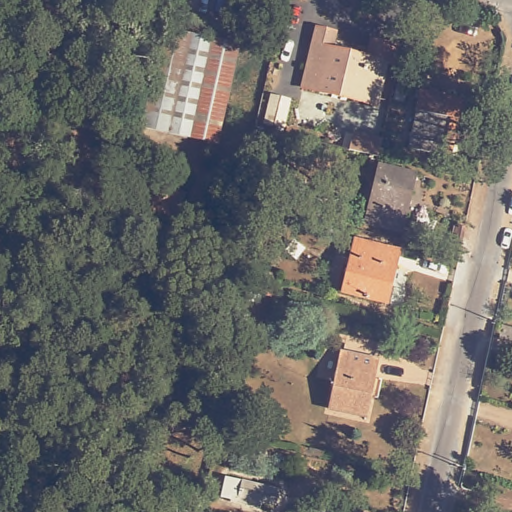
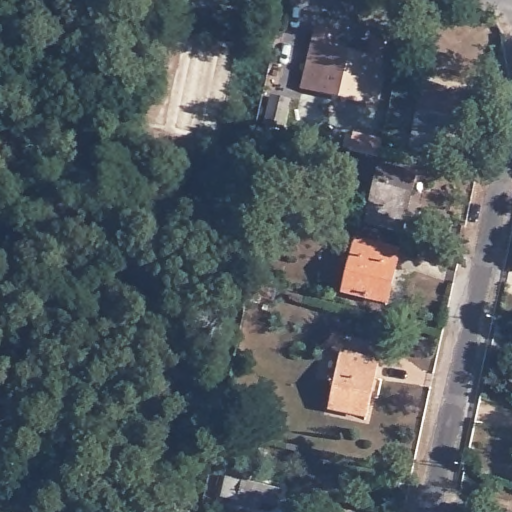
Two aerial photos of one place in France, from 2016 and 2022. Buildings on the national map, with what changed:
unchanged [(238,46),(216,142),(141,125),(163,28),(238,46)]
unchanged [(325,50),(361,58),(365,41),(384,45),(396,48),(392,66),(380,62),(370,105),(297,88),(311,29),(328,33),(325,50)]
unchanged [(467,99),(461,122),(455,121),(447,157),(410,149),(422,89),(467,99)]
unchanged [(286,117),(283,131),(263,126),(271,97),(289,101),(286,117)]
unchanged [(350,140),(380,147),(376,162),(347,155),(350,140)]
unchanged [(401,237),(365,229),(379,171),(415,180),(401,237)]
unchanged [(180,196),(167,221),(131,203),(145,178),(180,196)]
unchanged [(398,251),(386,304),(342,294),(353,242),(398,251)]
unchanged [(250,291),(253,281),(255,270),(262,272),(260,282),(257,292),(250,291)]
unchanged [(365,416),(328,407),(341,352),(377,360),(365,416)]
unchanged [(278,491),(274,506),(225,494),(229,478),(278,491)]

